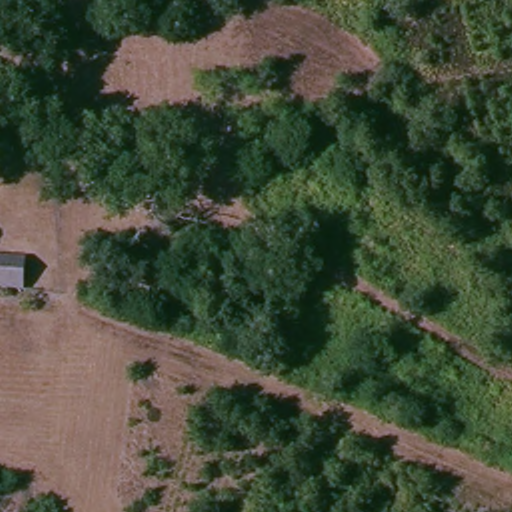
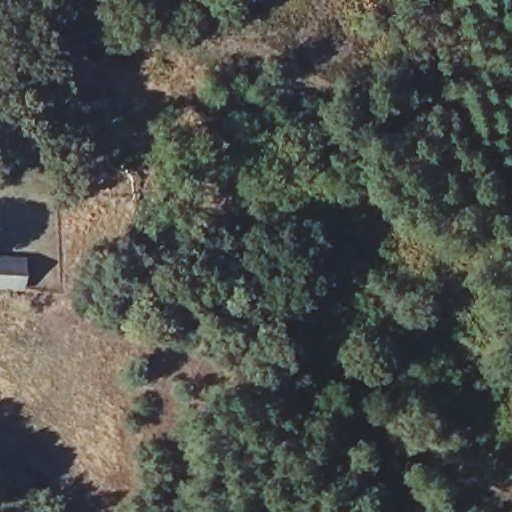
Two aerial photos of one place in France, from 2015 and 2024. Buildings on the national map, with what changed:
unchanged [(78,30),(44,28),(47,0),(81,0),(78,30)]
unchanged [(0,283),(0,251),(26,252),(24,284),(0,283)]

